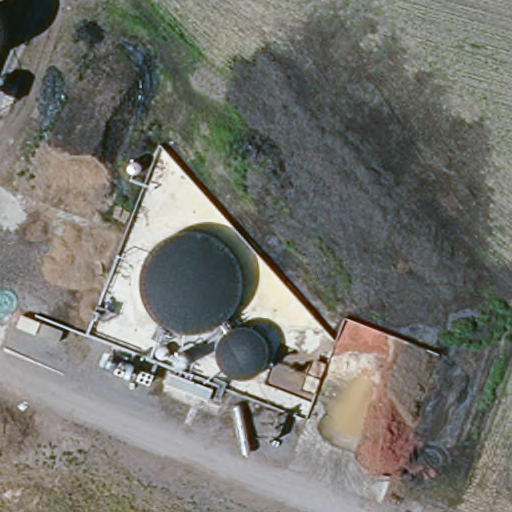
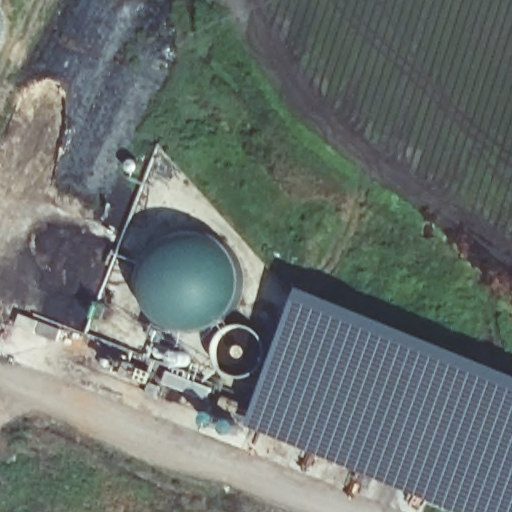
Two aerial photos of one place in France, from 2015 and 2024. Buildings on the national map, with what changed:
unchanged [(7,30),(5,47),(0,52),(0,6),(5,18),(7,30)]
unchanged [(0,94),(12,99),(5,118),(0,117),(0,94)]
new [(309,285),(512,368),(512,512),(452,512),(443,508),(383,480),(252,427),(309,285)]

